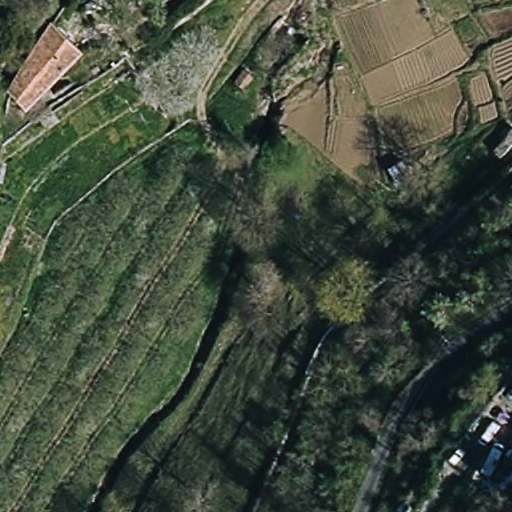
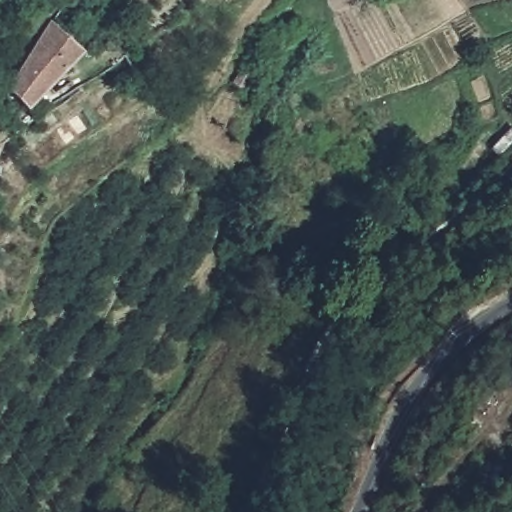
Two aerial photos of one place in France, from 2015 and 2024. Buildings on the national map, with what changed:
unchanged [(33,93),(19,78),(50,27),(76,53),(33,93)]

